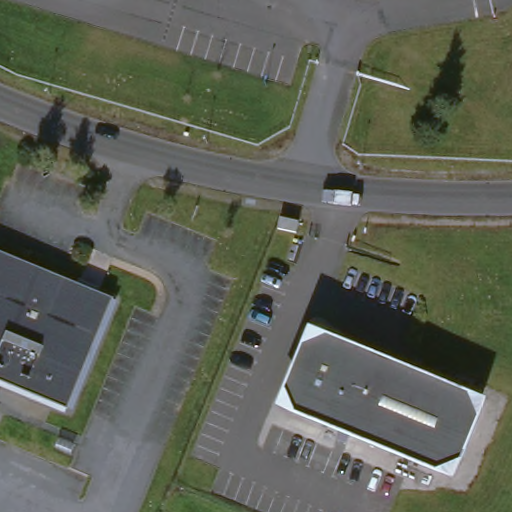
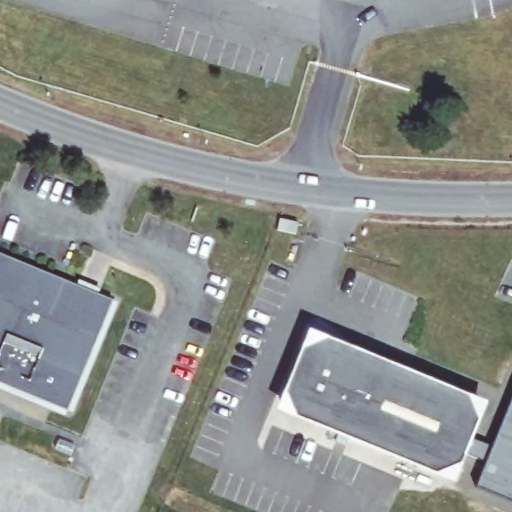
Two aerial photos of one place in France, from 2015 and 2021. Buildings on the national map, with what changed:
unchanged [(68,411),(0,383),(0,256),(112,301),(68,411)]
unchanged [(314,340),(485,408),(455,482),(285,414),(313,342),(314,340)]
new [(476,485),(485,462),(466,455),(473,437),(493,446),(512,400),(512,499),(476,485)]

